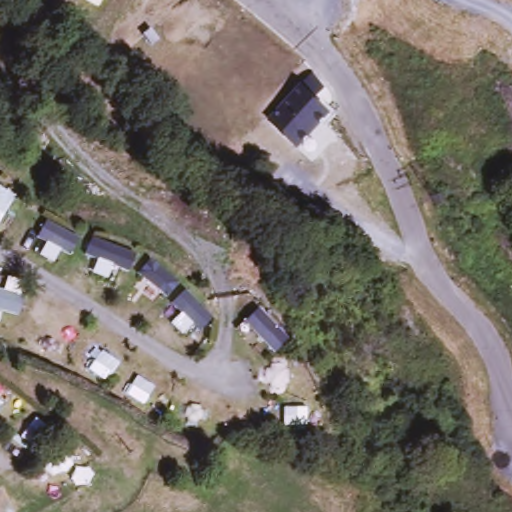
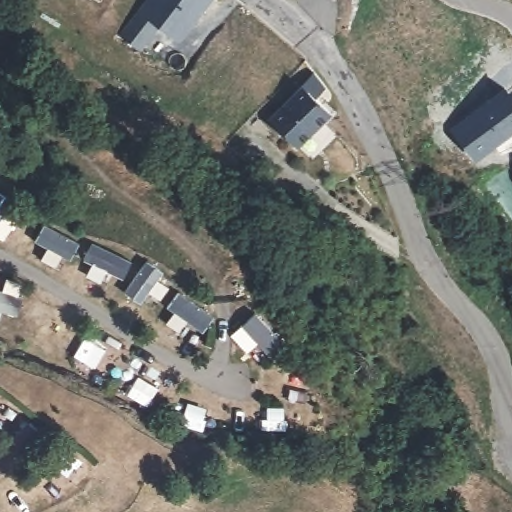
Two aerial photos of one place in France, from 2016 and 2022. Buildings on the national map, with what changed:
new [(160,26),(141,51),(124,39),(151,0),(210,0),(181,41),(160,26)]
unchanged [(332,119),(290,144),(269,110),(325,76),(334,91),(321,100),(332,119)]
new [(512,109),(512,132),(494,145),(467,163),(446,131),(501,94),(512,109)]
new [(512,150),(500,156),(494,145),(512,132),(512,150)]

